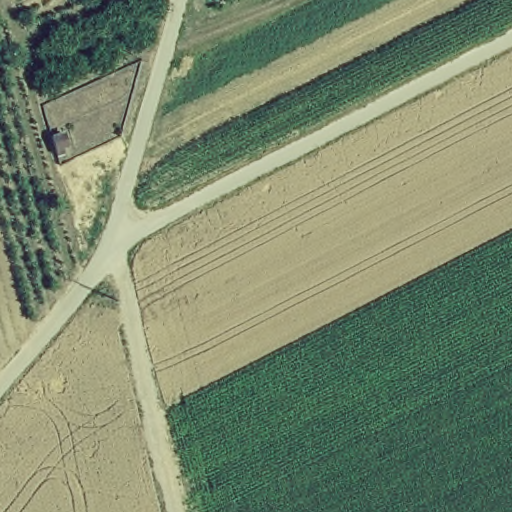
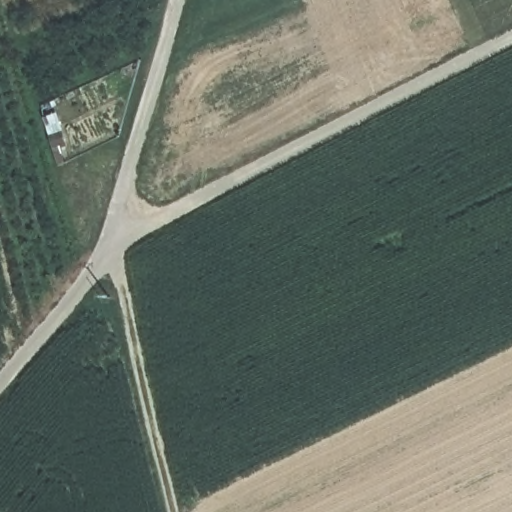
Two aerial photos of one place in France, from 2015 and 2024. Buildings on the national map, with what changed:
unchanged [(48,136),(60,127),(70,155),(55,161),(48,136)]

